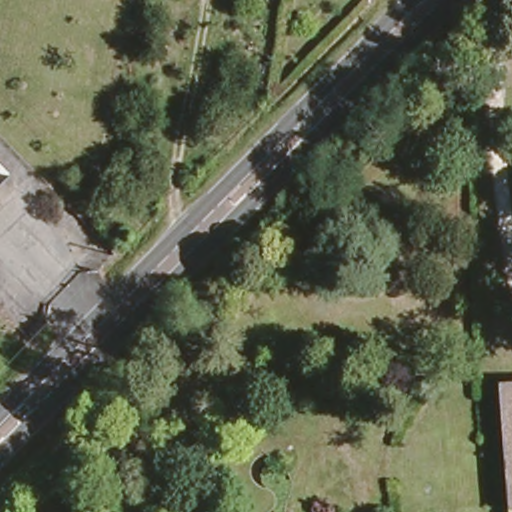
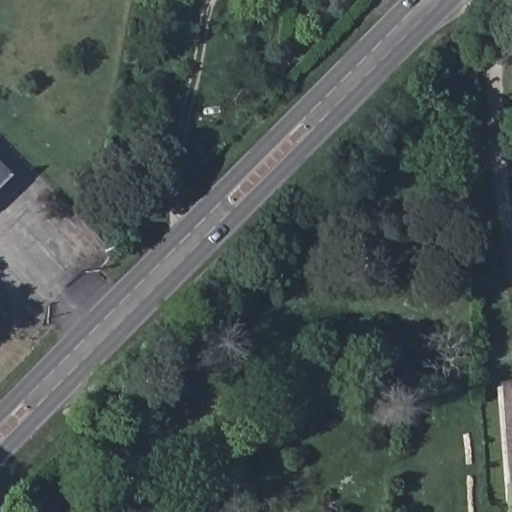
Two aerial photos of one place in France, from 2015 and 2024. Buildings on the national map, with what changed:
unchanged [(3,175),(0,178),(0,172),(3,175)]
unchanged [(501,386),(512,384),(512,511),(510,512),(510,504),(501,386)]

